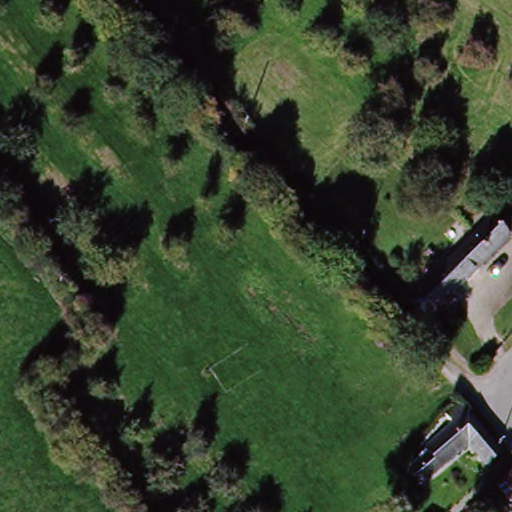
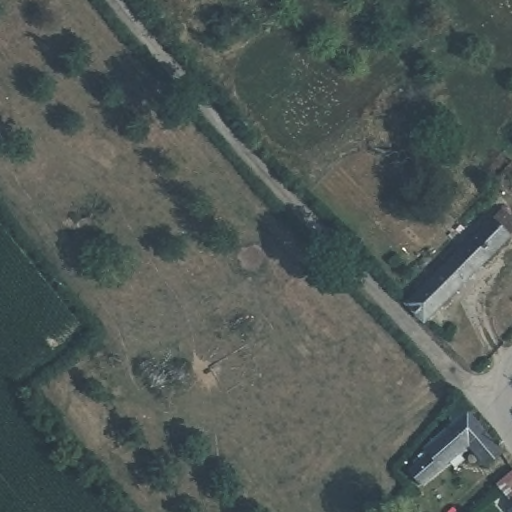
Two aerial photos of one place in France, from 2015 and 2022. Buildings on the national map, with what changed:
unchanged [(491,220),(503,208),(512,216),(512,234),(508,238),(419,324),(403,307),(491,220)]
unchanged [(451,426),(443,416),(461,402),(499,452),(484,465),(469,447),(418,491),(416,490),(404,475),(427,457),(424,447),(451,426)]
unchanged [(512,476),(512,497),(495,476),(506,468),(512,476)]

